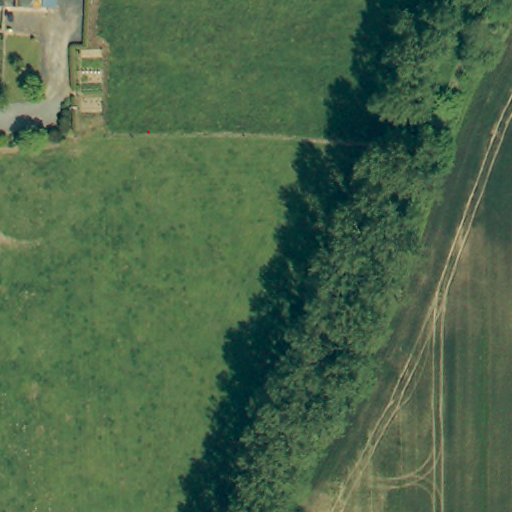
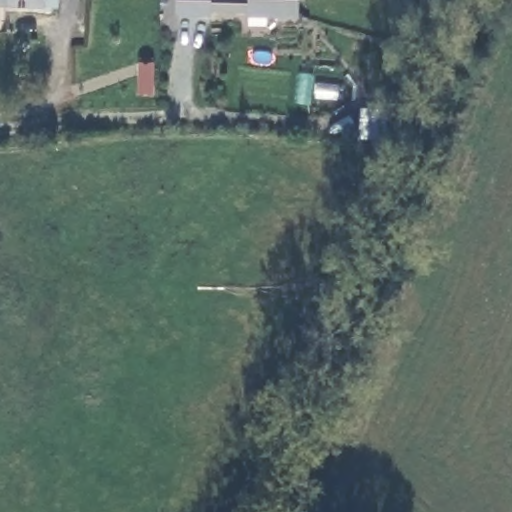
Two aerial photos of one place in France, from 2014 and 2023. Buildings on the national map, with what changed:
unchanged [(0,5),(0,0),(50,0),(50,9),(0,5)]
new [(212,10),(212,15),(177,13),(177,0),(299,0),(298,16),(248,15),(248,11),(212,10)]

